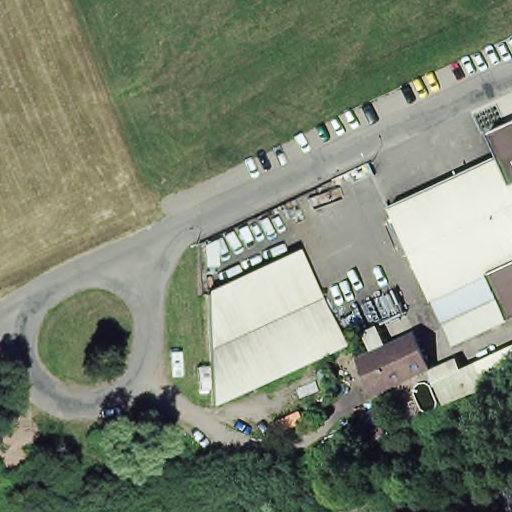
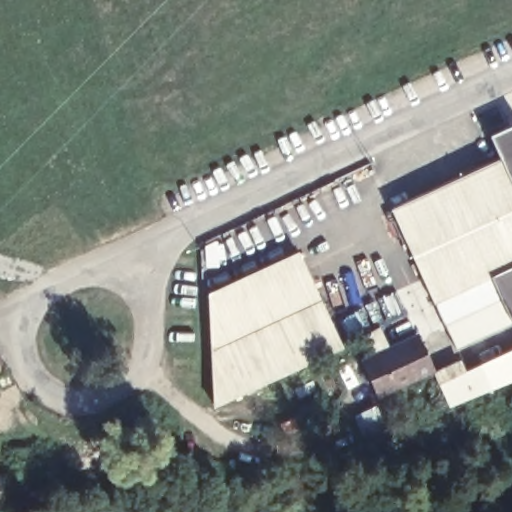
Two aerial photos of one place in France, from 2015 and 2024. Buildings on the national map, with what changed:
unchanged [(433,301),(390,208),(498,157),(487,134),(507,124),(512,126),(512,264),(433,301)]
unchanged [(216,404),(210,296),(297,255),(341,344),(323,353),(216,404)]
unchanged [(454,346),(433,301),(512,264),(512,319),(454,346)]
unchanged [(432,368),(375,395),(360,361),(415,334),(432,368)]
unchanged [(512,353),(512,385),(450,411),(439,384),(512,353)]

